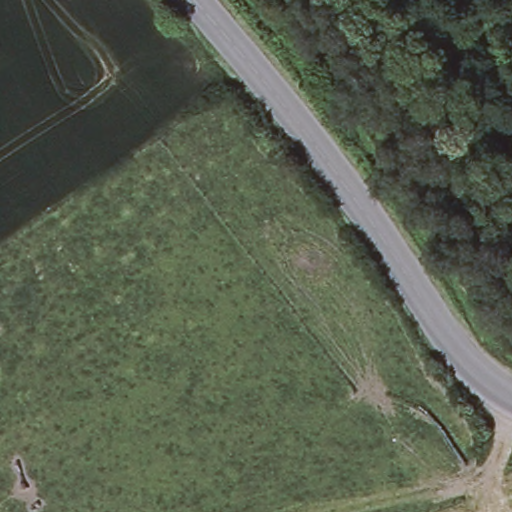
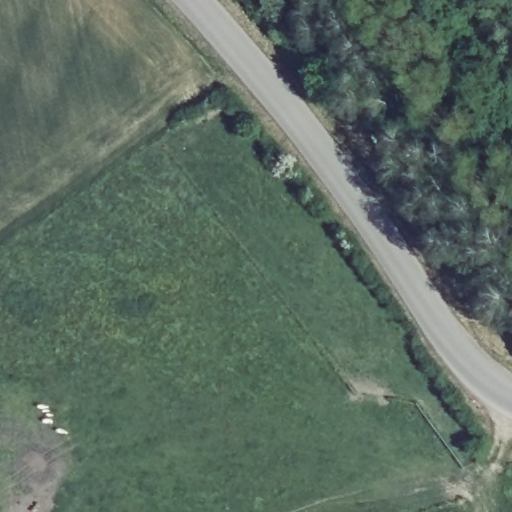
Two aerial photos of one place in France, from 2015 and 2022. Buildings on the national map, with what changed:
[]

